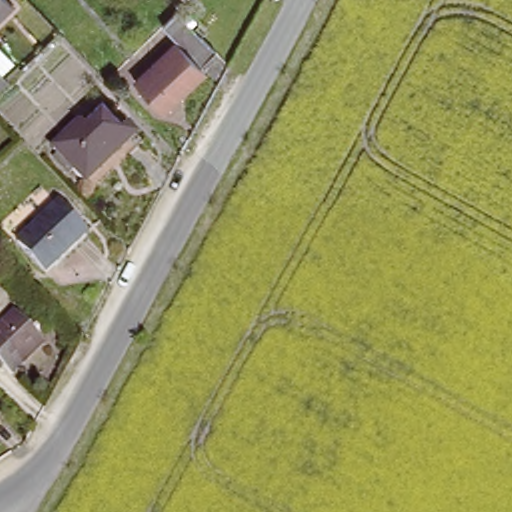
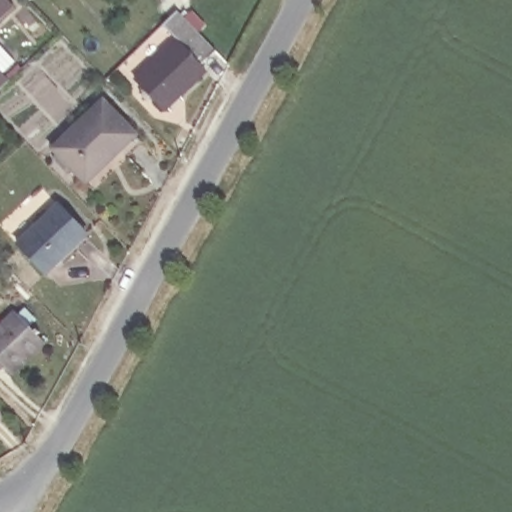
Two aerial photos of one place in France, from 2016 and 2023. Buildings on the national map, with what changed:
unchanged [(0,22),(0,0),(14,0),(18,5),(0,22)]
unchanged [(216,45),(201,60),(208,66),(166,107),(136,76),(178,34),(164,19),(178,5),(216,45)]
unchanged [(6,67),(17,79),(0,96),(0,33),(20,55),(6,67)]
unchanged [(115,106),(143,136),(92,185),(63,155),(115,106)]
unchanged [(64,205),(90,231),(50,272),(23,245),(64,205)]
unchanged [(16,368),(7,359),(2,364),(0,362),(0,329),(22,307),(50,335),(16,368)]

